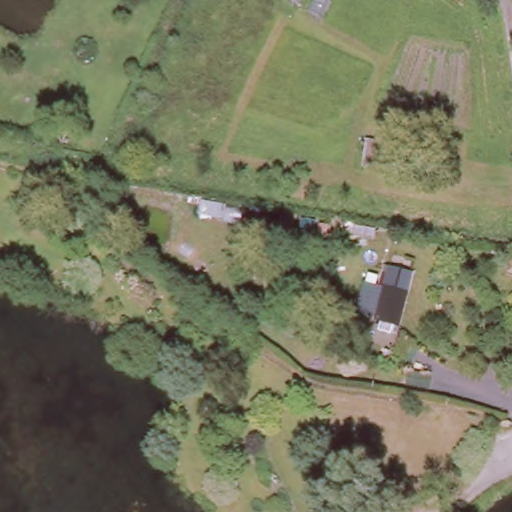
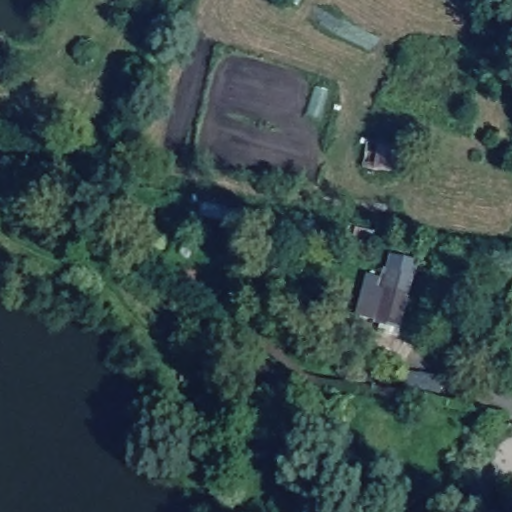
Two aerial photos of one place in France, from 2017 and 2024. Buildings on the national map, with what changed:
unchanged [(410,140),(407,171),(362,168),(361,137),(410,140)]
unchanged [(406,320),(377,310),(387,266),(419,274),(406,320)]

